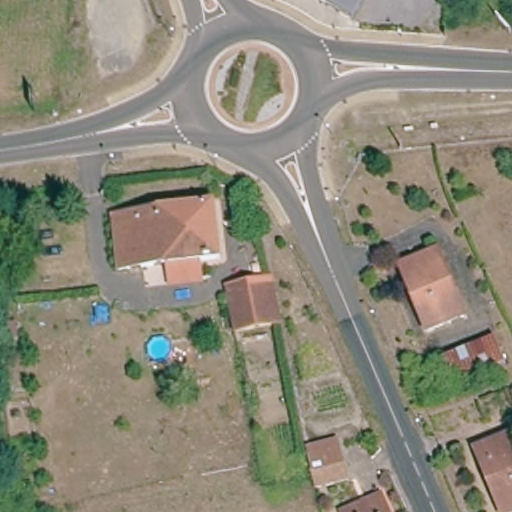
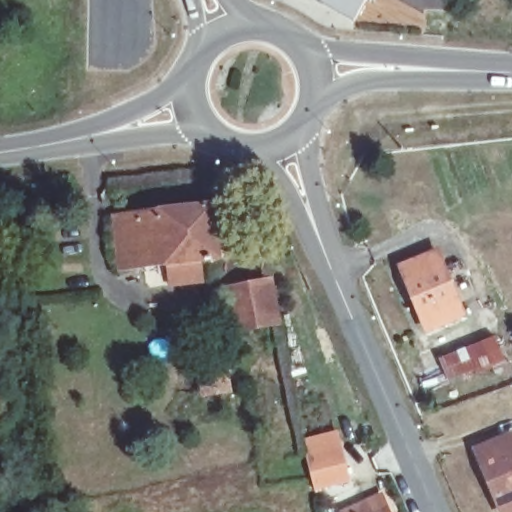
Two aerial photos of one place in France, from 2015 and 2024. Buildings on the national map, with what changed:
unchanged [(318,0),(365,0),(354,20),(318,0)]
unchanged [(116,268),(107,218),(202,205),(211,257),(122,268),(116,268)]
unchanged [(423,322),(420,313),(401,263),(436,249),(457,299),(463,316),(445,324),(427,332),(423,322)]
unchanged [(262,279),(268,330),(229,332),(226,283),(262,279)]
unchanged [(476,349),(484,371),(460,381),(450,359),(476,349)]
unchanged [(473,451),(507,438),(512,452),(512,475),(486,484),(473,451)]
unchanged [(335,445),(342,479),(310,483),(305,448),(304,444),(335,445)]
unchanged [(512,475),(512,511),(509,512),(496,512),(486,484),(512,475)]
unchanged [(337,509),(355,502),(358,508),(380,502),(383,512),(339,512),(337,509)]

